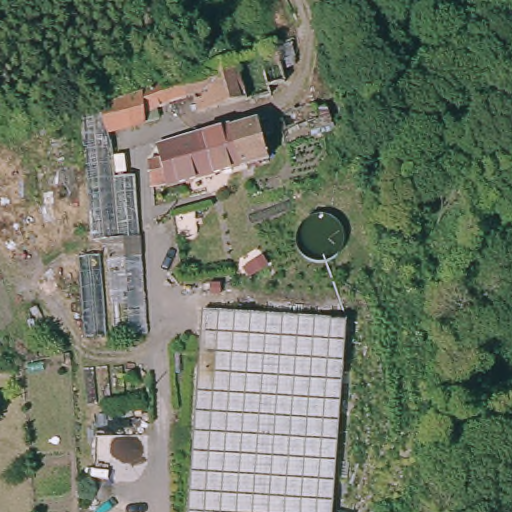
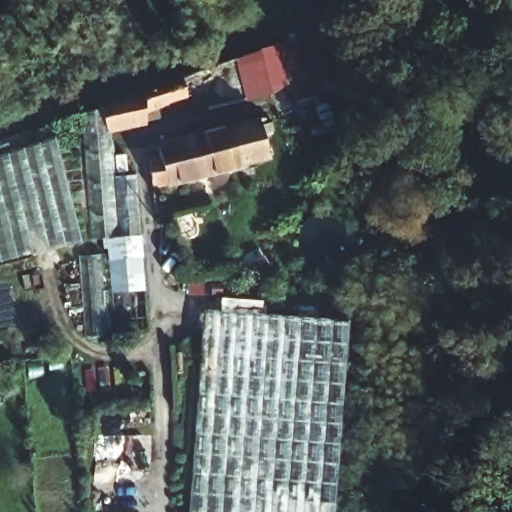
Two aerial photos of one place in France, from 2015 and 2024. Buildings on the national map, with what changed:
unchanged [(202,65),(275,42),(282,66),(269,70),(270,80),(265,86),(256,86),(257,94),(187,110),(183,97),(130,110),(133,122),(108,127),(97,130),(91,104),(90,101),(202,65)]
unchanged [(91,104),(97,130),(108,127),(113,169),(132,169),(144,332),(112,334),(101,240),(84,240),(79,108),(91,104)]
unchanged [(222,164),(147,184),(145,149),(155,147),(152,139),(254,111),(265,151),(222,164)]
new [(80,243),(0,264),(0,159),(54,143),(80,243)]
unchanged [(202,310),(346,318),(332,512),(189,512),(202,310)]

